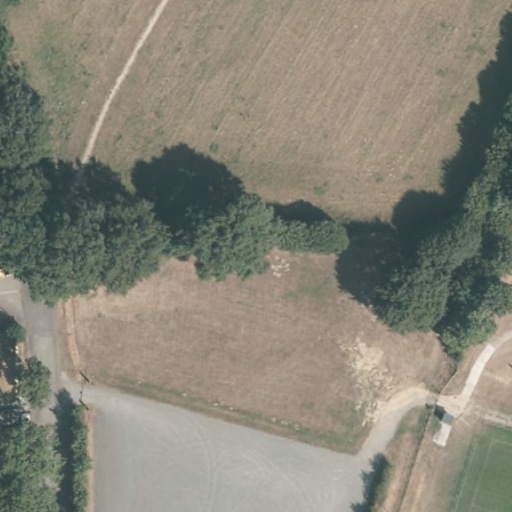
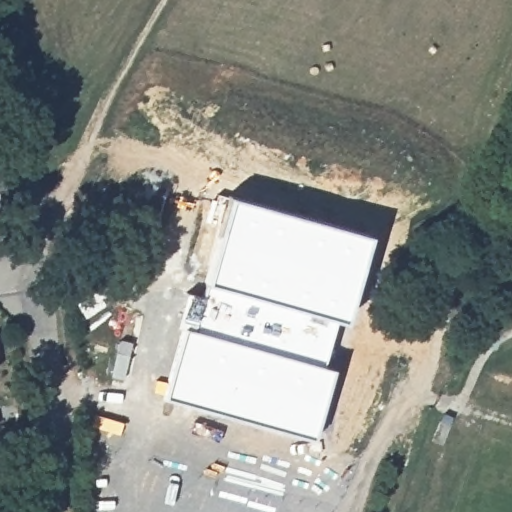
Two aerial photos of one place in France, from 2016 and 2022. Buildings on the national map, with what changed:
new [(189,330),(201,333),(230,199),(381,240),(354,323),(345,324),(330,367),(346,375),(325,442),(167,400),(189,330)]

